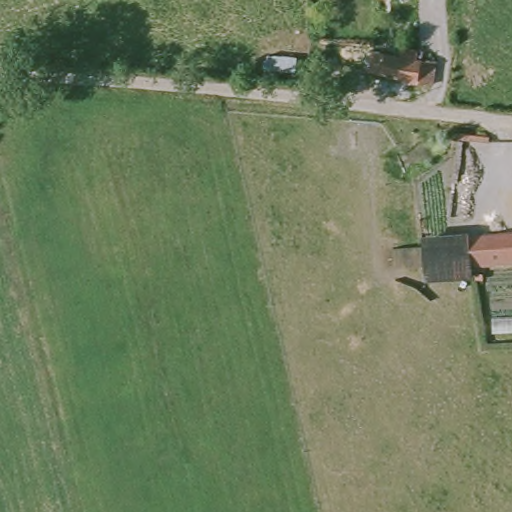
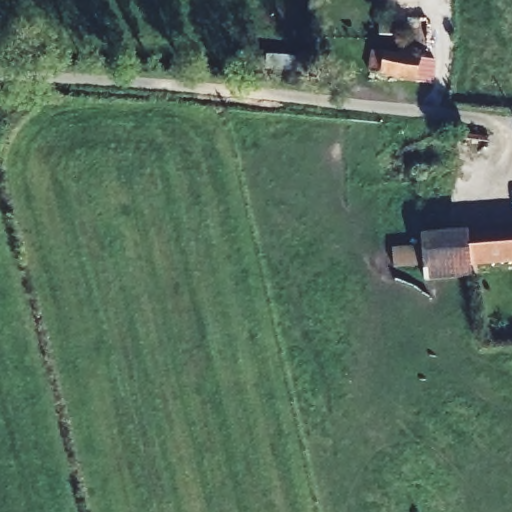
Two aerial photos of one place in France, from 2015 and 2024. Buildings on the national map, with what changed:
unchanged [(428,71),(371,71),(370,50),(397,49),(398,42),(413,42),(414,49),(430,49),(428,71)]
unchanged [(491,136),(489,156),(453,154),(456,134),(491,136)]
unchanged [(467,272),(467,266),(464,239),(512,236),(512,269),(467,272)]
unchanged [(467,266),(467,272),(467,281),(418,283),(417,242),(464,239),(467,266)]

